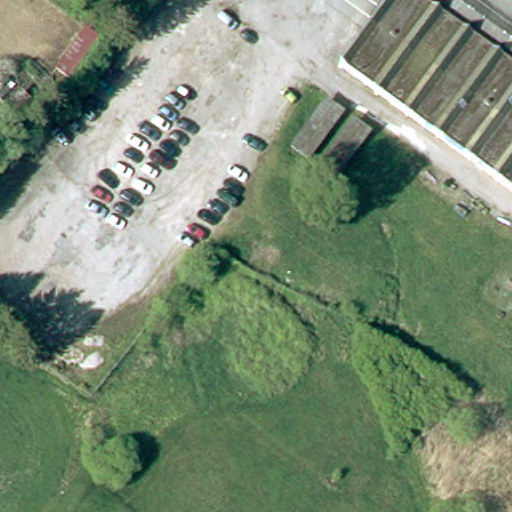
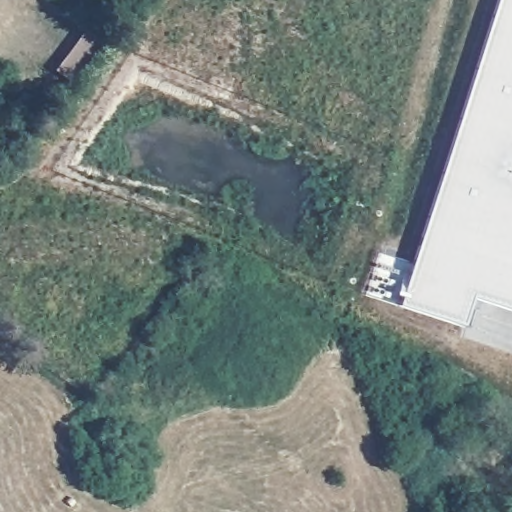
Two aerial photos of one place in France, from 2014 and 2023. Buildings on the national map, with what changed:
demolished [(396,0),(512,0),(512,194),(344,73),(396,0)]
new [(499,0),(512,0),(512,315),(411,288),(499,0)]
unchanged [(85,31),(97,40),(67,80),(55,71),(85,31)]
demolished [(293,153),(329,104),(373,137),(337,185),(293,153)]

